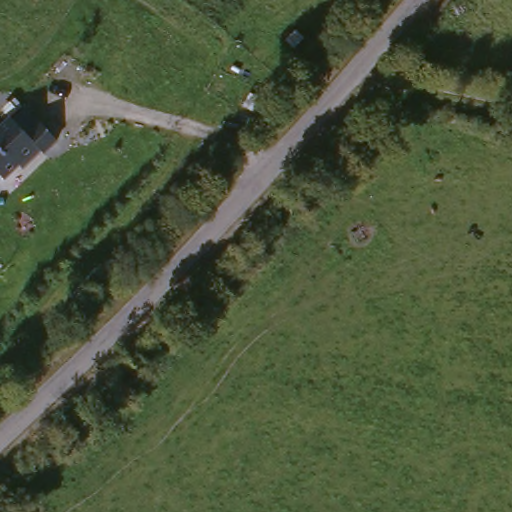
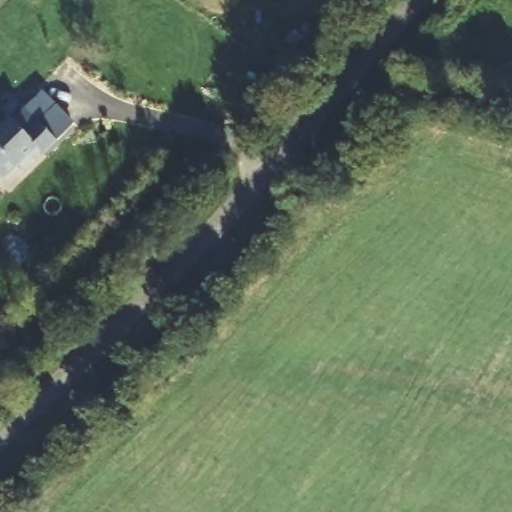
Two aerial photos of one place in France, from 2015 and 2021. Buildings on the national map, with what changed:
unchanged [(54,132),(5,175),(0,169),(0,119),(26,98),(54,132)]

